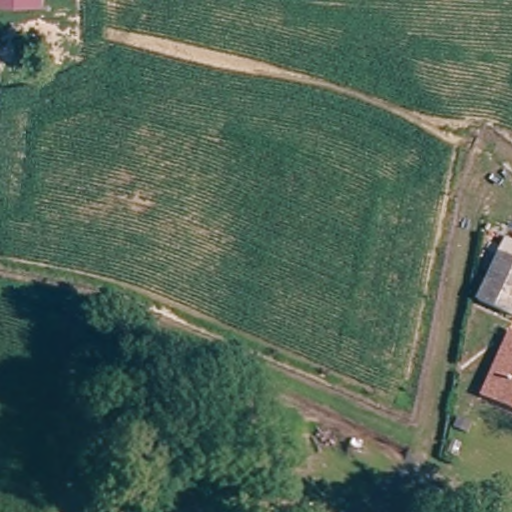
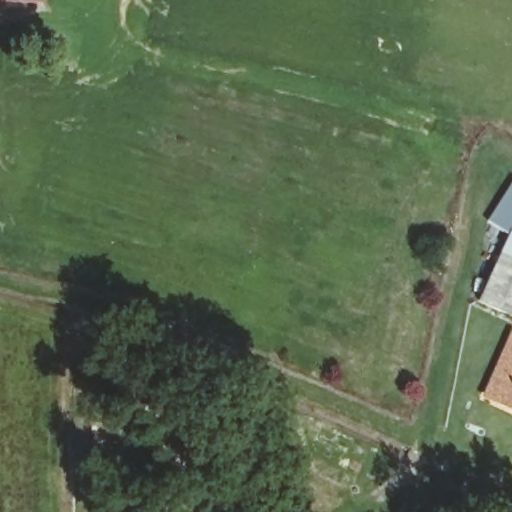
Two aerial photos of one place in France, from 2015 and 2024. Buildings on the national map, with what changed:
unchanged [(0,0),(42,0),(41,2),(0,0)]
new [(489,223),(512,185),(512,238),(489,223)]
unchanged [(486,298),(506,247),(512,249),(512,309),(486,298)]
unchanged [(487,395),(511,338),(512,339),(512,405),(487,395)]

